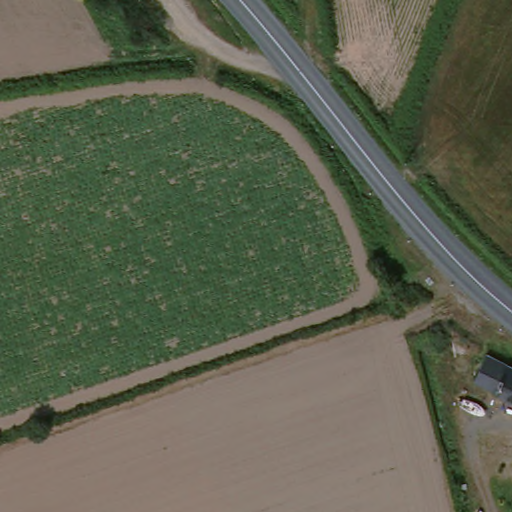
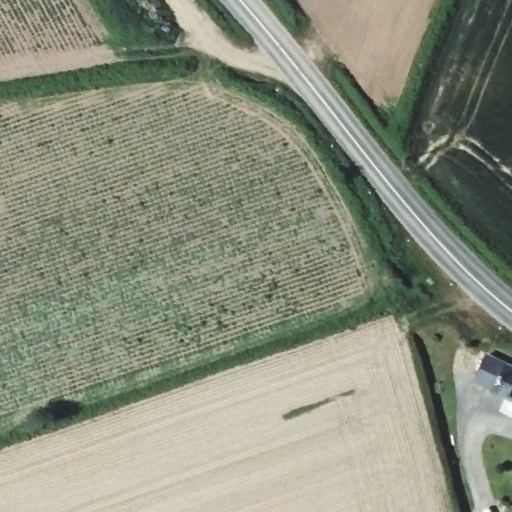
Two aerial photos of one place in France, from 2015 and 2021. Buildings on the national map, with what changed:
unchanged [(512,363),(512,395),(478,377),(493,353),(512,363)]

